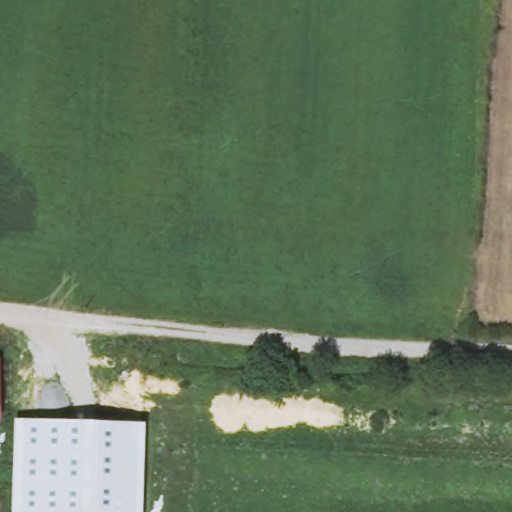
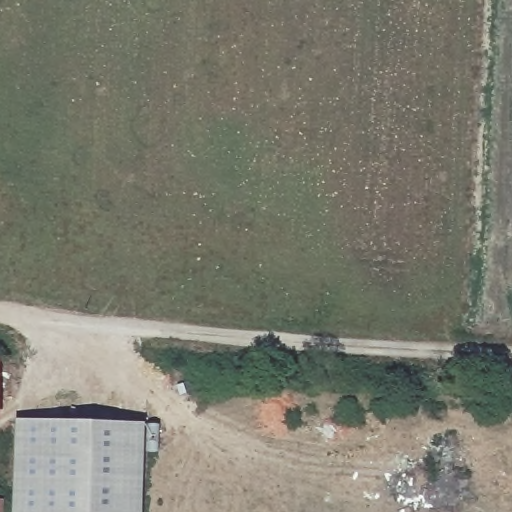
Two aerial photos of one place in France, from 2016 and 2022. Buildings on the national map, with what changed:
unchanged [(0,423),(0,380),(1,422),(0,423)]
unchanged [(141,512),(11,512),(14,419),(144,423),(141,512)]

